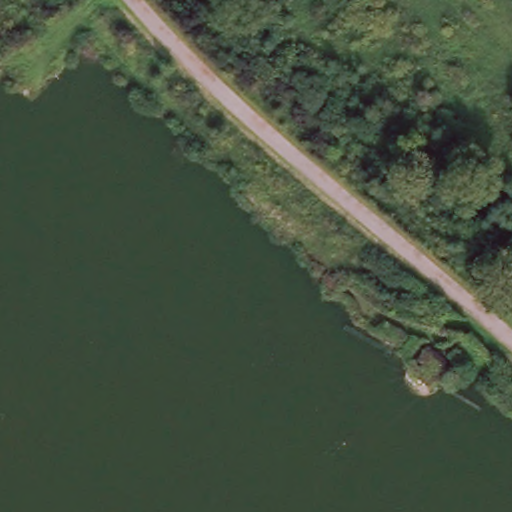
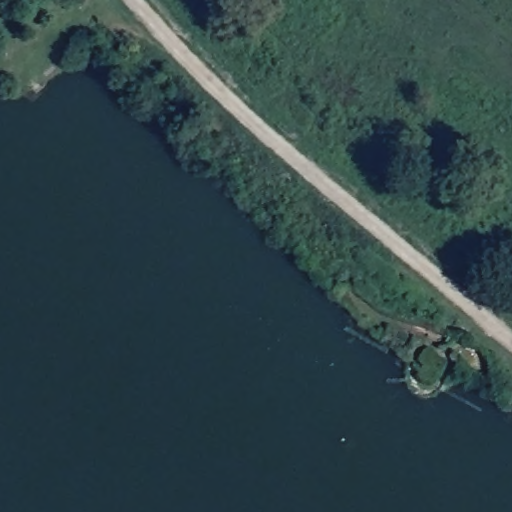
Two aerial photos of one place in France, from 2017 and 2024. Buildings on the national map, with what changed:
unchanged [(425,357),(442,371),(427,387),(416,377),(422,370),(417,366),(425,357)]

